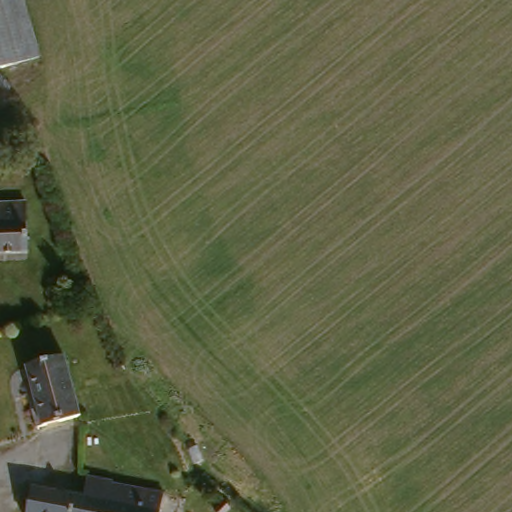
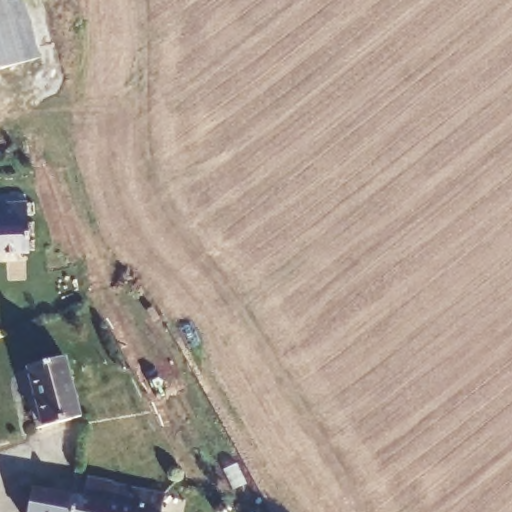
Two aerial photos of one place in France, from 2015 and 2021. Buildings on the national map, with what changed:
unchanged [(10,0),(17,0),(36,61),(0,72),(0,2),(0,4),(10,0)]
unchanged [(24,224),(24,257),(0,257),(0,207),(20,208),(24,224)]
unchanged [(61,360),(71,414),(31,422),(26,392),(31,392),(27,367),(61,360)]
unchanged [(29,495),(83,500),(85,477),(104,480),(104,483),(159,490),(158,512),(28,512),(29,495)]

